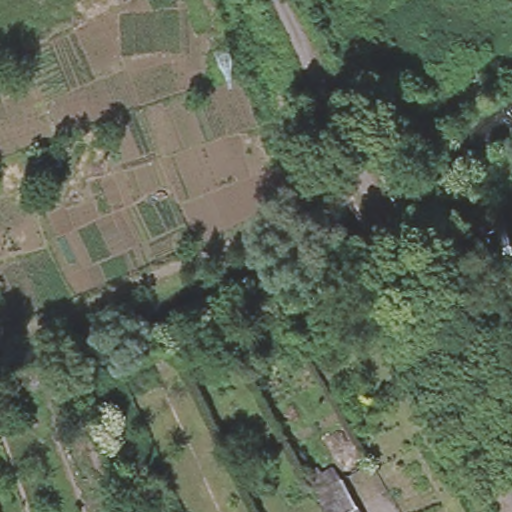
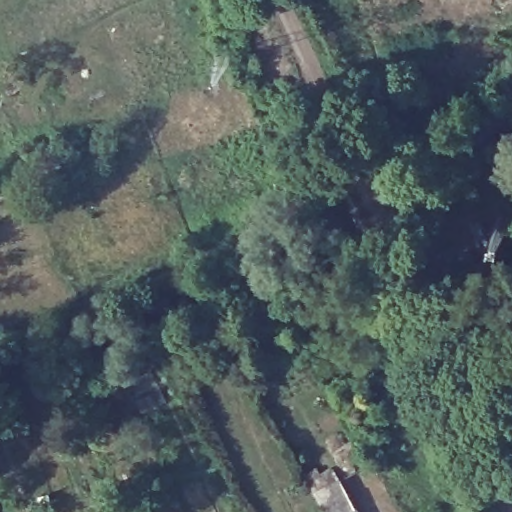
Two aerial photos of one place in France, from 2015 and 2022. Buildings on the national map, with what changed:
unchanged [(320,503),(311,487),(305,474),(332,460),(340,474),(347,488),(355,502),(361,512),(325,512),(320,503)]

